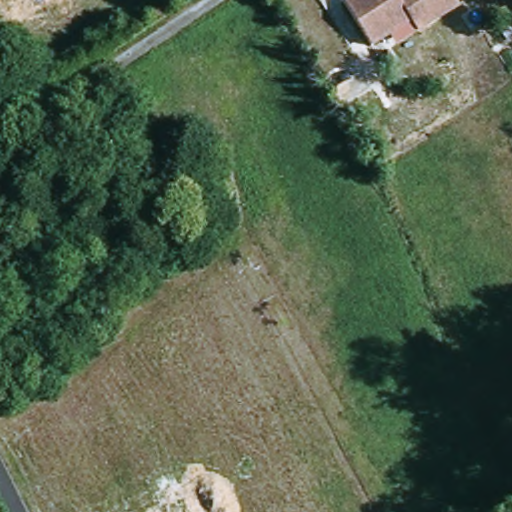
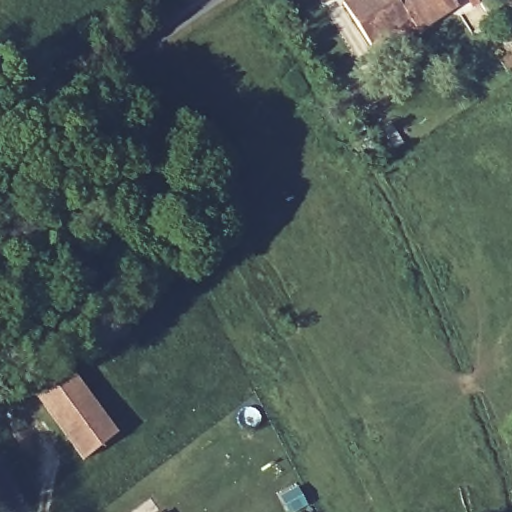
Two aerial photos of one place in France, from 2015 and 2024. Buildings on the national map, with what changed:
unchanged [(460,7),(417,33),(411,23),(371,48),(343,4),(350,0),(455,0),(460,7)]
new [(118,433),(81,460),(30,391),(69,364),(118,433)]

